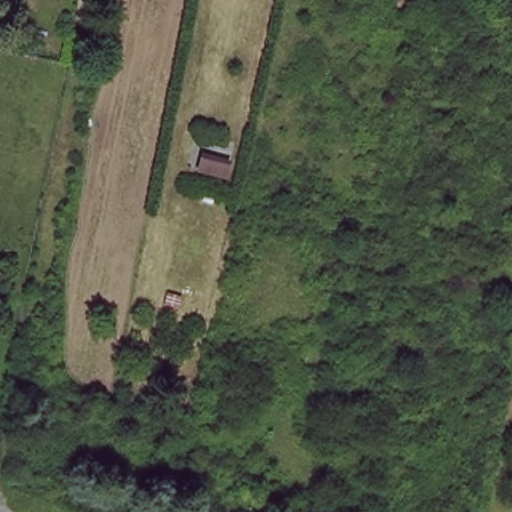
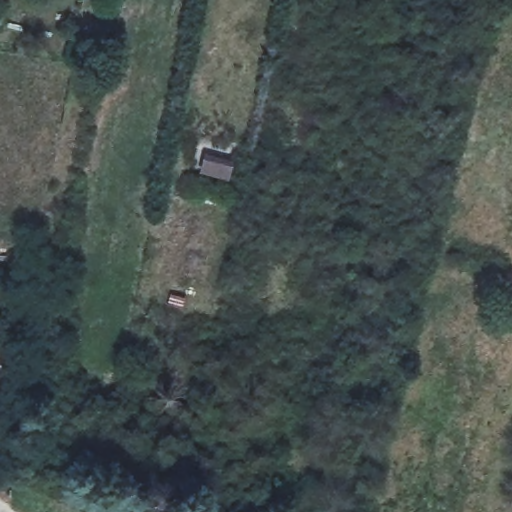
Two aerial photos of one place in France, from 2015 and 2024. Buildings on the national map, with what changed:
unchanged [(233,165),(230,177),(205,169),(210,154),(233,165)]

